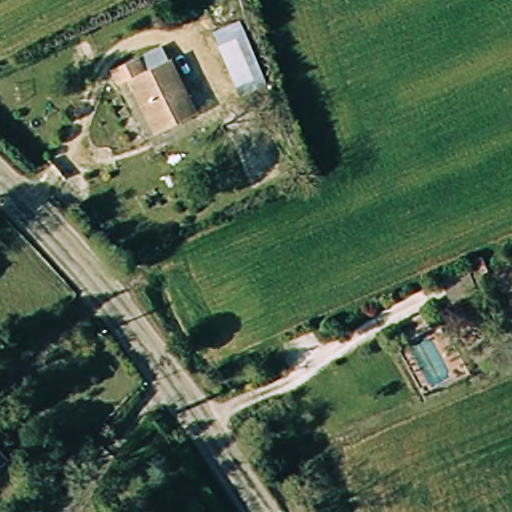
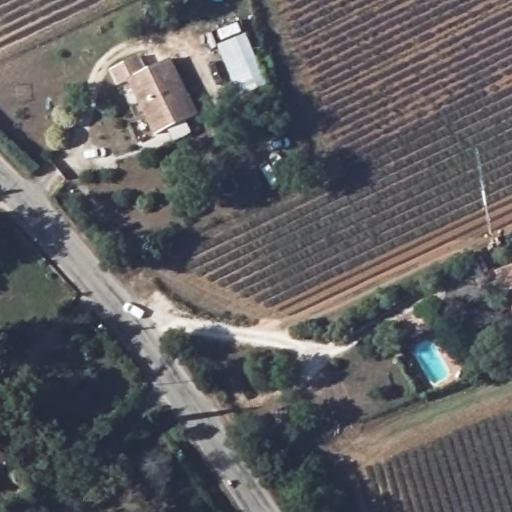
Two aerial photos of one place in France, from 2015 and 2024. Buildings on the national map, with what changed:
unchanged [(238,22),(265,86),(238,98),(209,33),(238,22)]
unchanged [(142,54),(149,69),(168,61),(194,119),(158,135),(132,79),(121,84),(113,67),(142,54)]
unchanged [(512,265),(512,312),(510,313),(502,292),(498,294),(490,273),(512,265)]
unchanged [(467,275),(478,303),(450,314),(440,286),(467,275)]
unchanged [(430,322),(437,335),(407,352),(400,339),(430,322)]
unchanged [(0,448),(8,456),(0,464),(0,448)]

